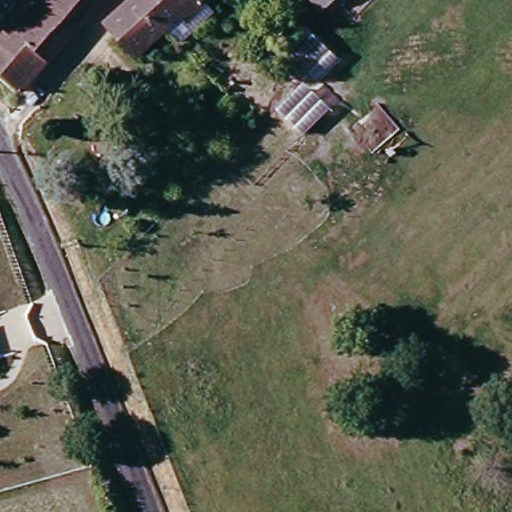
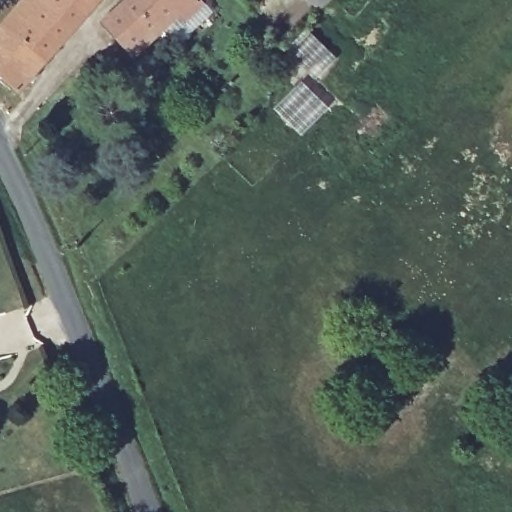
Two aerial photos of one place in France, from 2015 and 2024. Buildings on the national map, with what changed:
unchanged [(7,91),(0,78),(0,17),(16,0),(97,0),(7,91)]
unchanged [(186,16),(178,7),(135,50),(115,32),(118,27),(108,14),(122,0),(201,0),(186,16)]
unchanged [(310,5),(306,0),(316,0),(310,5)]

